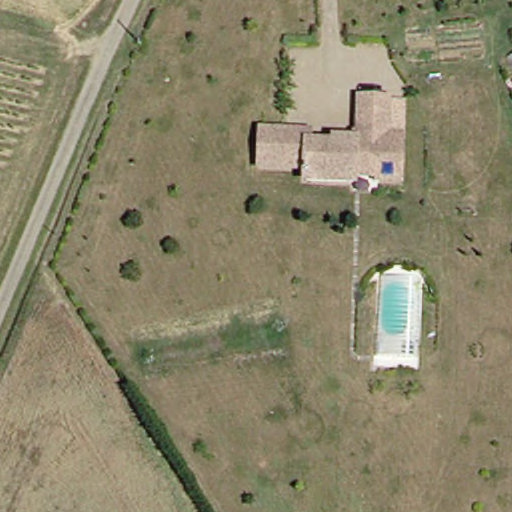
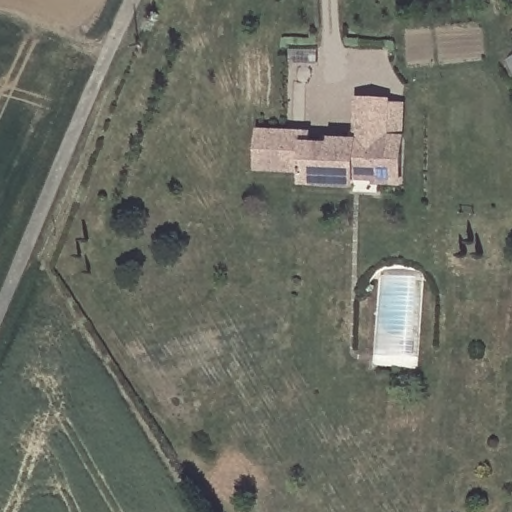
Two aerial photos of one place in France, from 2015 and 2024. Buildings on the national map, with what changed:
unchanged [(312,140),(339,142),(339,136),(357,137),(357,131),(362,132),(365,95),(392,96),(391,133),(406,134),(404,177),(382,177),(382,172),(358,171),(357,179),(308,176),(310,164),(263,161),(266,126),(312,128),(312,140)]

